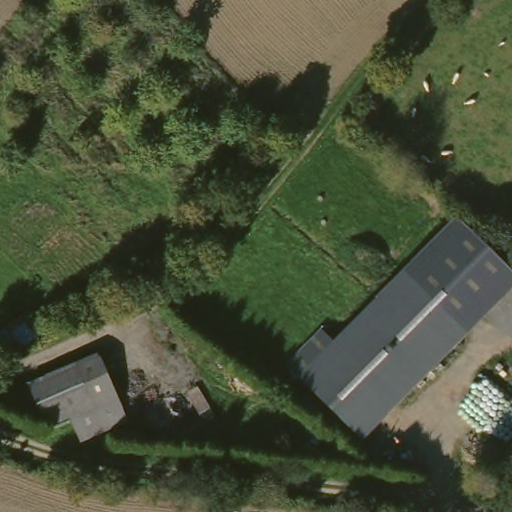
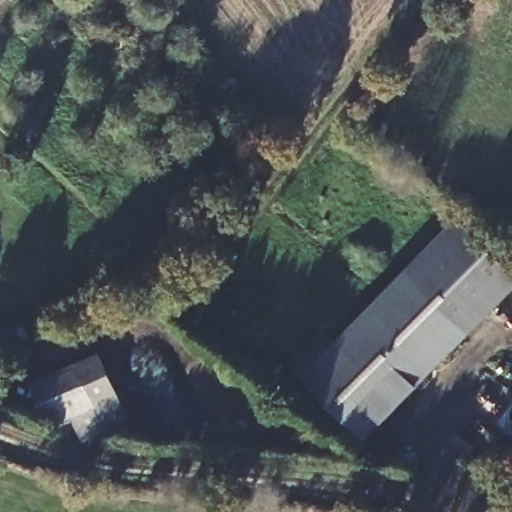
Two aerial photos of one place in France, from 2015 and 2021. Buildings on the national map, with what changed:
unchanged [(512,272),(512,287),(474,332),(410,272),(461,219),(512,272)]
unchanged [(474,332),(372,442),(306,377),(410,272),(474,332)]
unchanged [(100,345),(141,411),(95,438),(80,415),(59,427),(33,385),(100,345)]

